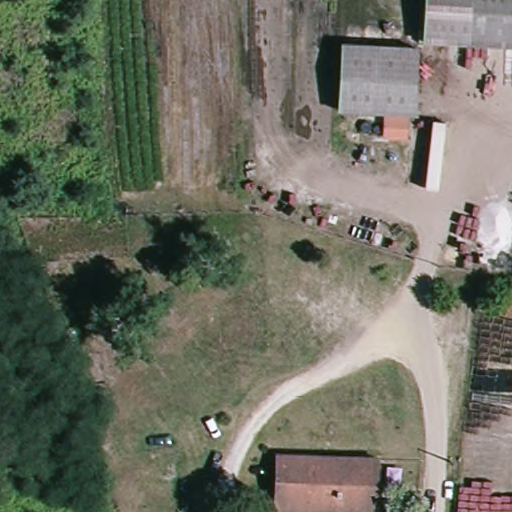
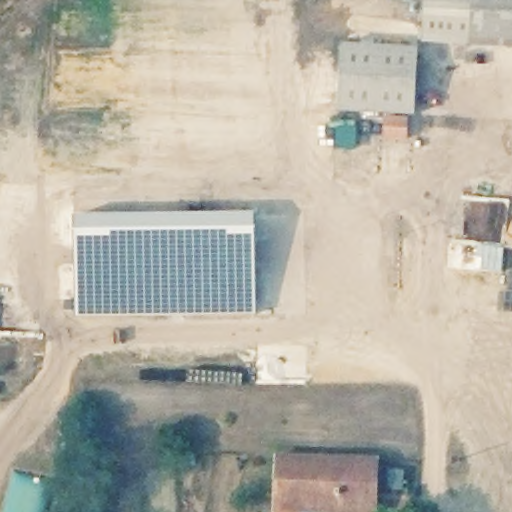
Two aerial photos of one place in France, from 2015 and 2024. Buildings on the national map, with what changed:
unchanged [(435,0),(512,0),(512,49),(498,49),(477,47),(432,45),(435,0)]
unchanged [(425,51),(421,115),(345,110),(350,45),(425,51)]
new [(73,215),(254,213),(254,313),(76,316),(73,215)]
unchanged [(375,465),(371,511),(274,506),(278,461),(375,465)]

